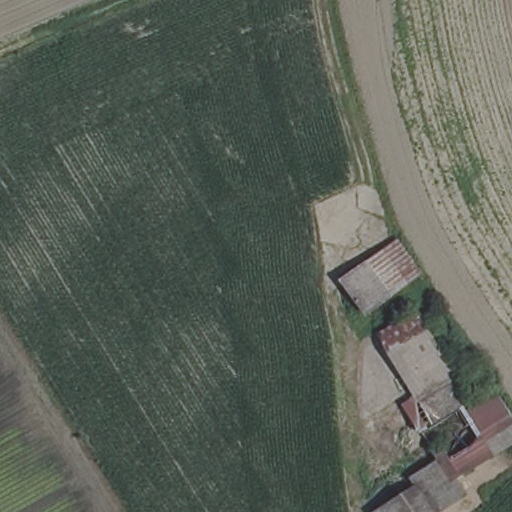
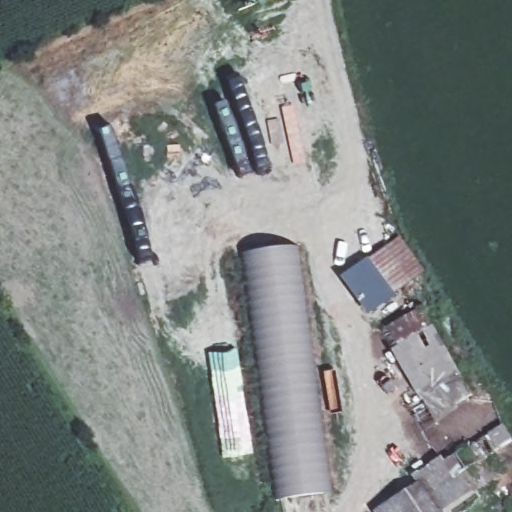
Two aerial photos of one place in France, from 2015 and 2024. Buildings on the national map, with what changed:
unchanged [(392,294),(368,311),(343,278),(384,249),(399,240),(421,271),(407,281),(390,292),(392,294)]
new [(298,245),(311,347),(318,381),(331,495),(271,500),(239,253),(298,245)]
unchanged [(408,478),(436,459),(401,404),(413,396),(376,333),(413,312),(465,401),(486,388),(512,430),(512,438),(449,477),(459,491),(444,501),(445,503),(431,512),(376,512),(414,487),(408,478)]

